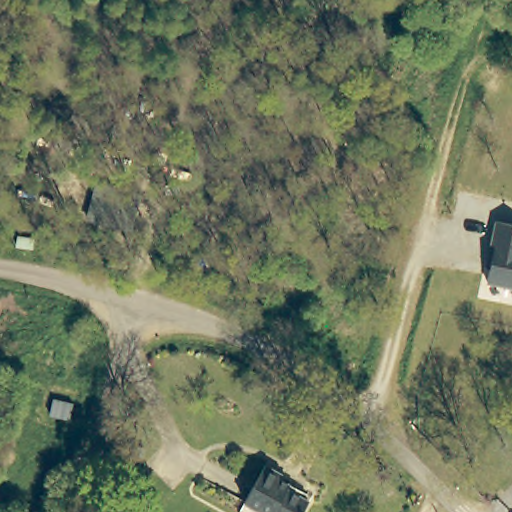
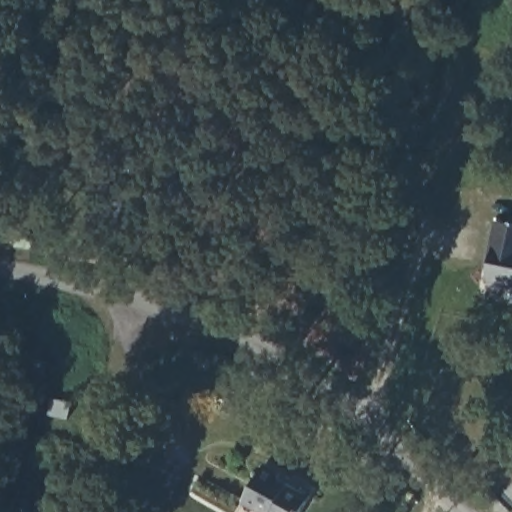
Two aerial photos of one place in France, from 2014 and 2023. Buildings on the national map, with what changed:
unchanged [(512,288),(485,281),(492,246),(490,245),(495,222),(512,226),(512,288)]
unchanged [(265,465),(283,476),(281,480),(310,496),(300,512),(240,512),(238,511),(265,465)]

